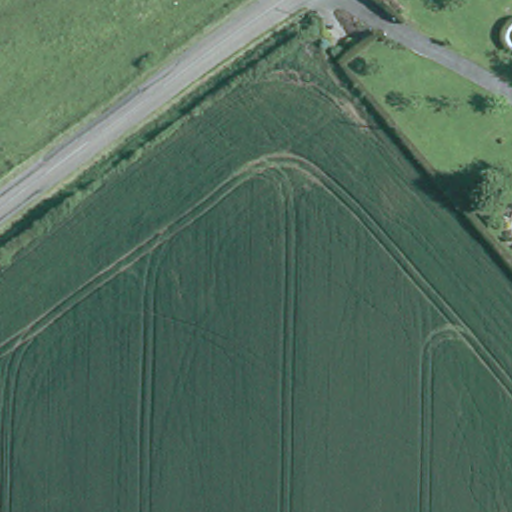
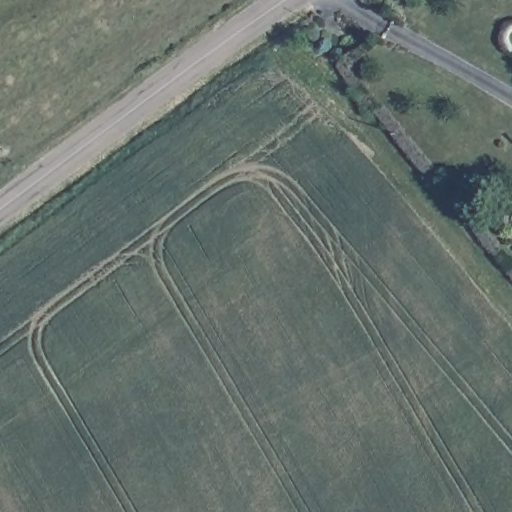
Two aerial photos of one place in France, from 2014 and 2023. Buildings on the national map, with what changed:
unchanged [(350,39),(337,48),(321,23),(334,15),(350,39)]

